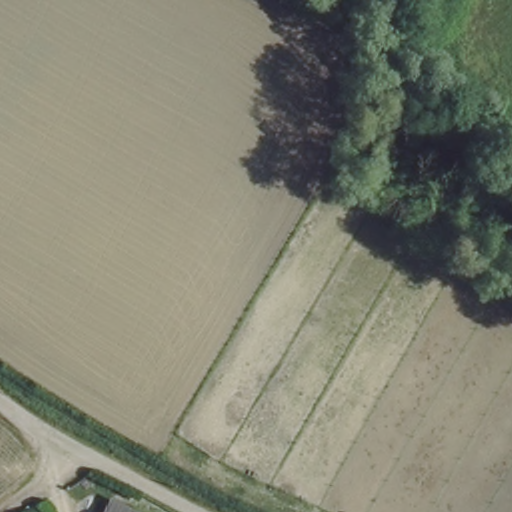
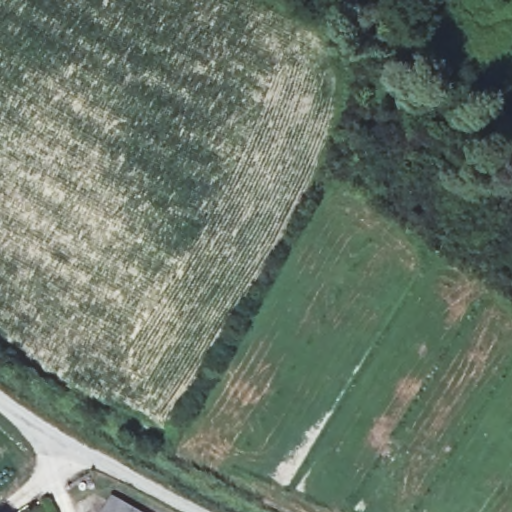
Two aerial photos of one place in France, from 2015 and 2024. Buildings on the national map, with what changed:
unchanged [(158,512),(99,512),(115,486),(158,512)]

